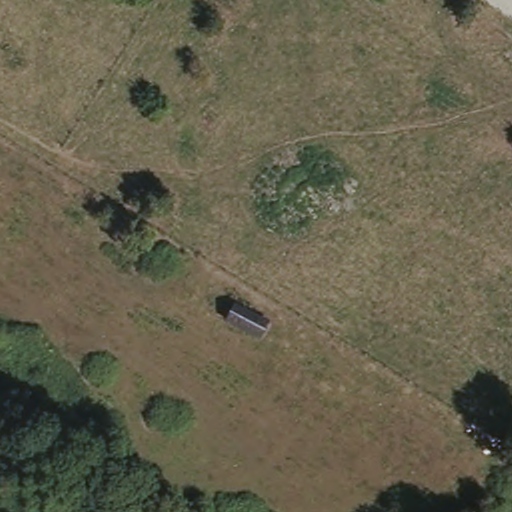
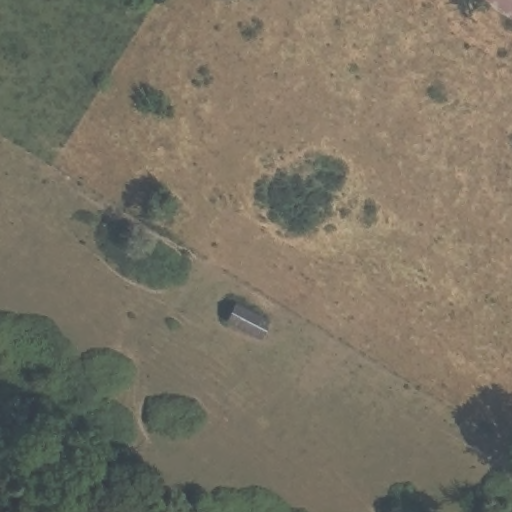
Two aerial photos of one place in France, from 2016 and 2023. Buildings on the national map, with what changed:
unchanged [(262,323),(254,339),(223,322),(231,306),(262,323)]

